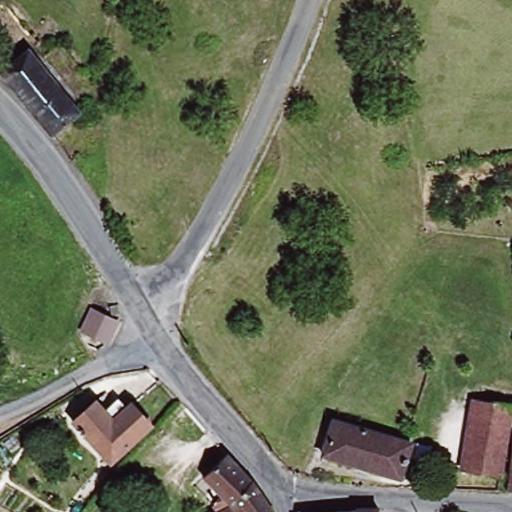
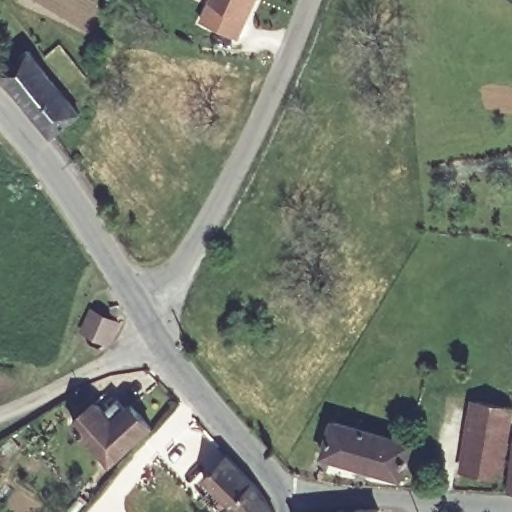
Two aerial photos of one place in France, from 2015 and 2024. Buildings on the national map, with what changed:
new [(255,0),(238,38),(202,22),(212,0),(255,0)]
unchanged [(3,74),(32,51),(82,114),(54,136),(3,74)]
unchanged [(87,330),(97,311),(120,322),(111,341),(87,330)]
unchanged [(114,464),(76,424),(99,403),(107,413),(121,400),(129,409),(134,405),(155,428),(114,464)]
unchanged [(511,409),(499,479),(460,472),(472,402),(511,409)]
unchanged [(320,452),(331,418),(408,441),(397,476),(320,452)]
unchanged [(512,436),(512,494),(505,494),(512,436)]
unchanged [(260,483),(264,486),(281,512),(224,512),(220,508),(230,499),(211,479),(234,456),(260,483)]
unchanged [(376,509),(376,512),(352,512),(353,510),(376,509)]

